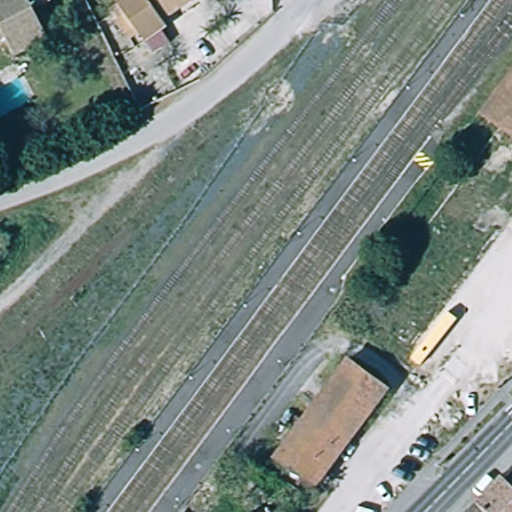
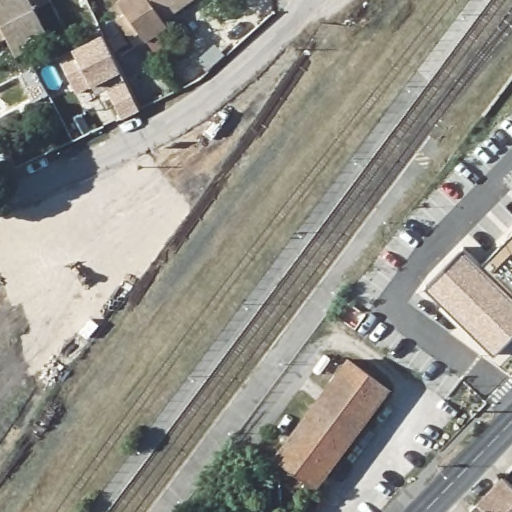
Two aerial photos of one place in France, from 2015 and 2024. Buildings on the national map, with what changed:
unchanged [(6,38),(0,41),(0,0),(50,0),(51,2),(34,10),(49,41),(16,57),(6,38)]
unchanged [(168,27),(145,43),(139,35),(131,41),(116,21),(125,15),(117,4),(122,0),(193,0),(163,21),(168,27)]
new [(103,37),(120,72),(76,95),(58,59),(103,37)]
new [(125,82),(139,111),(122,120),(108,92),(125,82)]
demolished [(487,116),(512,82),(512,135),(487,116)]
new [(463,247),(480,264),(512,232),(512,333),(494,352),(426,286),(463,247)]
unchanged [(316,489),(275,458),(349,361),(389,391),(316,489)]
unchanged [(503,477),(512,486),(512,512),(483,512),(476,505),(503,477)]
unchanged [(476,505),(483,512),(469,512),(476,505)]

